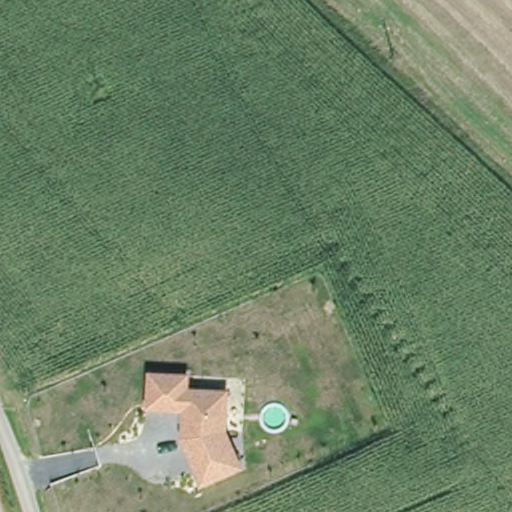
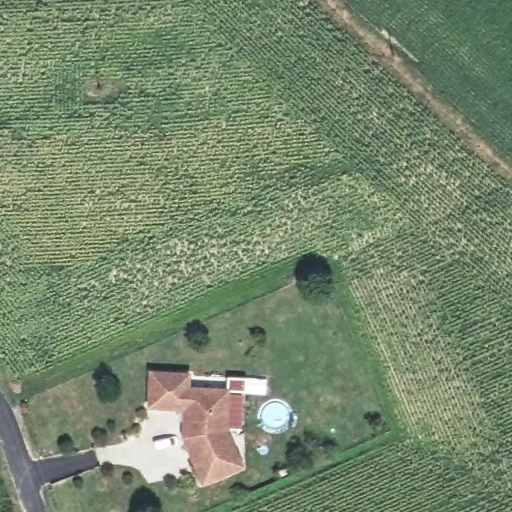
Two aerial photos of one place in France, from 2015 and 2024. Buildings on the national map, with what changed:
unchanged [(200,484),(183,439),(185,409),(150,407),(153,373),(189,376),(188,391),(229,394),(225,433),(240,470),(200,484)]

